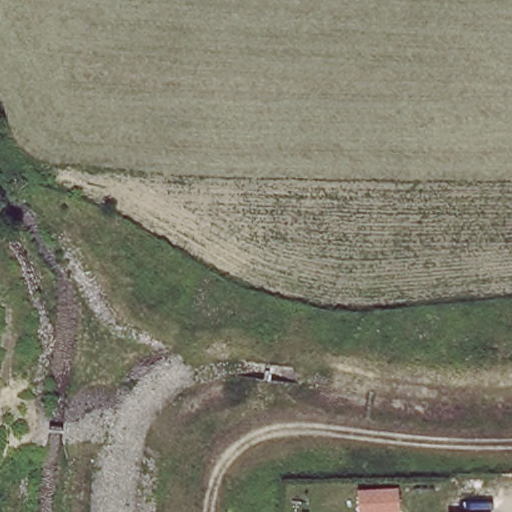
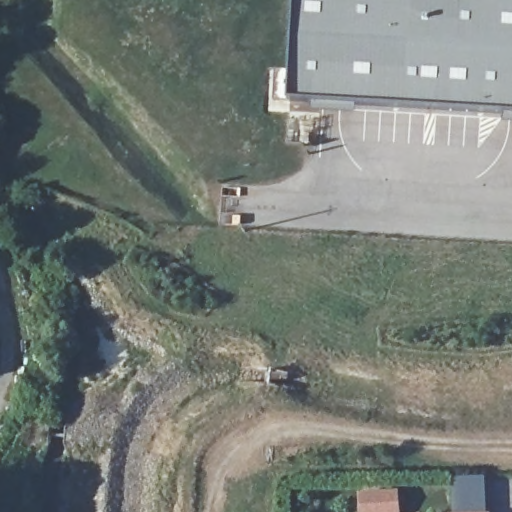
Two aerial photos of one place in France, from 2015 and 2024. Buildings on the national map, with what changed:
new [(512,5),(512,121),(283,114),(286,0),(408,0),(512,5)]
new [(393,511),(379,512),(357,512),(356,492),(392,490),(393,511)]

